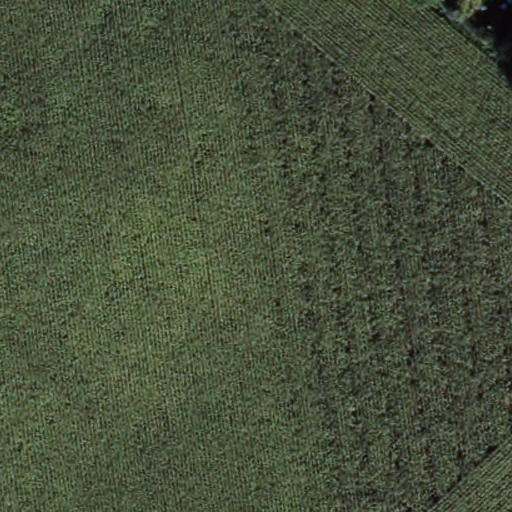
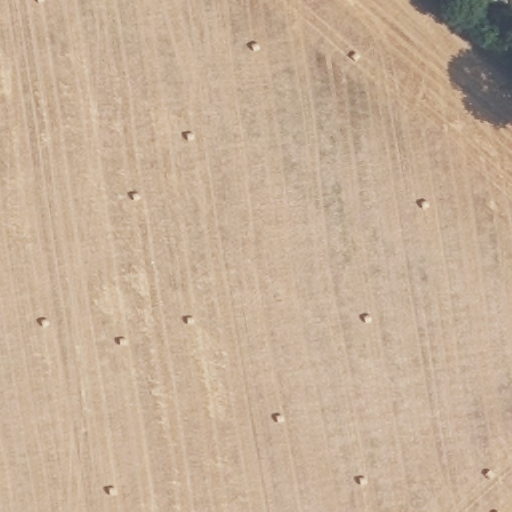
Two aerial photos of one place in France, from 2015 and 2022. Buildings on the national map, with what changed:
[]

